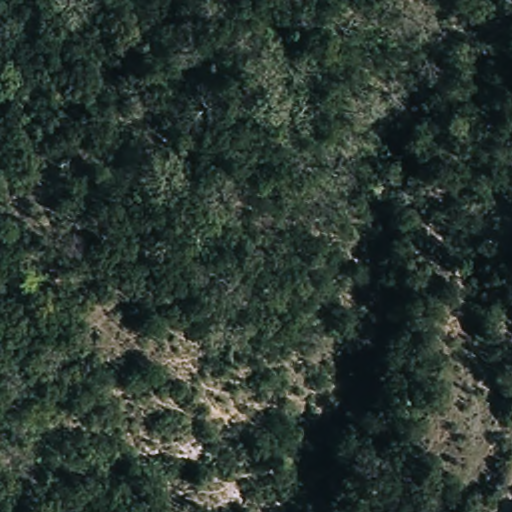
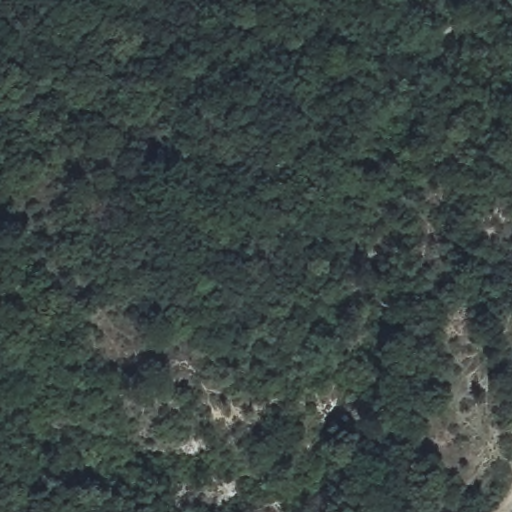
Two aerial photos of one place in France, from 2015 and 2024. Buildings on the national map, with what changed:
[]

